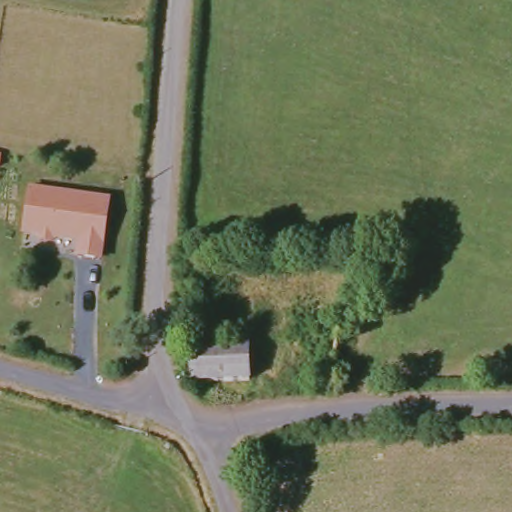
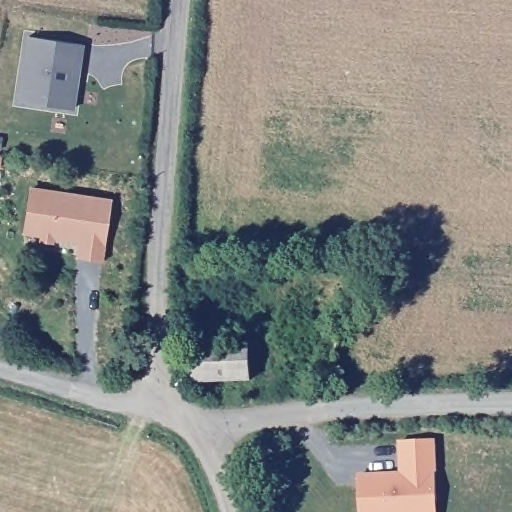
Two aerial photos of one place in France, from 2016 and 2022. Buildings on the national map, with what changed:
new [(27,37),(83,45),(74,109),(17,100),(27,37)]
unchanged [(32,187),(114,200),(105,262),(78,259),(80,242),(55,239),(55,245),(40,242),(41,237),(25,234),(32,187)]
unchanged [(250,381),(192,384),(190,349),(248,345),(250,381)]
new [(397,442),(435,440),(438,512),(358,512),(357,475),(399,472),(397,442)]

